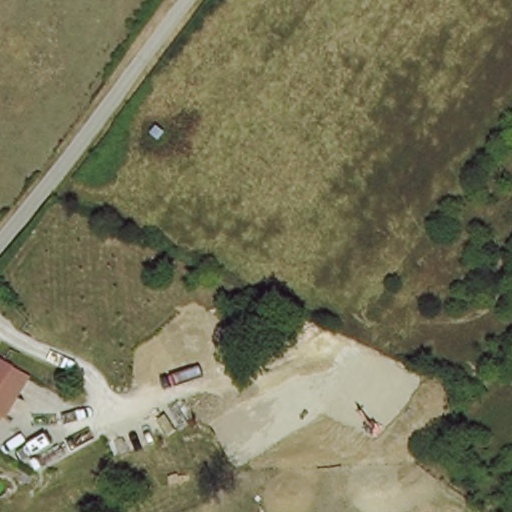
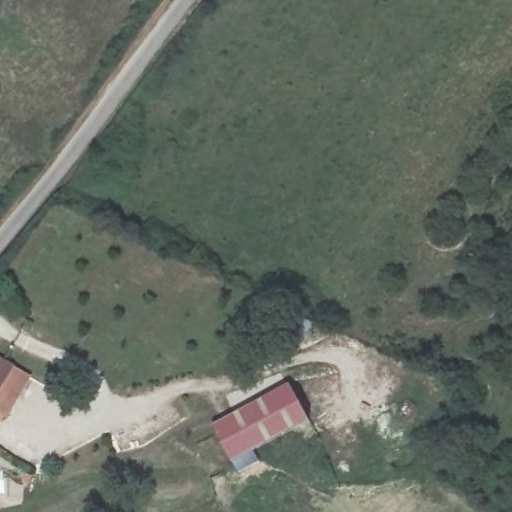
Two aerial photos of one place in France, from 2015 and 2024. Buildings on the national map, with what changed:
unchanged [(0,390),(0,355),(14,364),(0,390)]
unchanged [(35,379),(8,427),(0,422),(0,423),(0,390),(14,364),(35,379)]
new [(233,459),(214,424),(291,384),(310,418),(233,459)]

